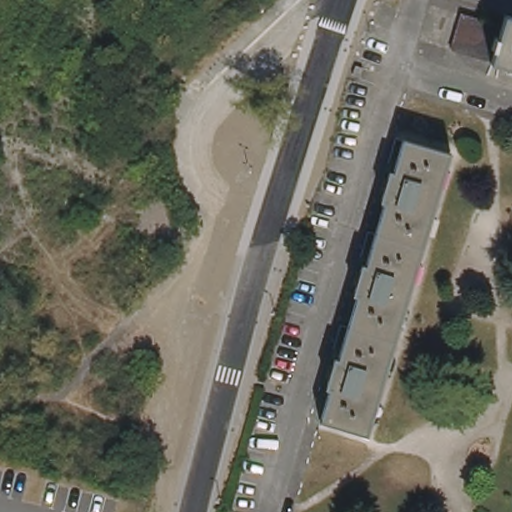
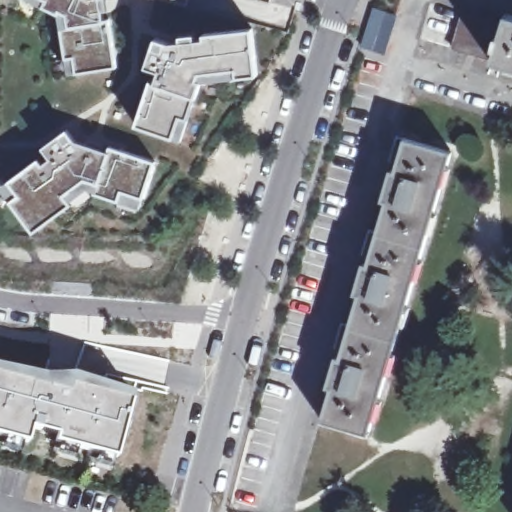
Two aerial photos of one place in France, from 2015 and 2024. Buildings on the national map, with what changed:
new [(61,30),(58,15),(43,8),(28,0),(106,0),(107,11),(101,11),(102,20),(107,20),(115,68),(76,74),(67,75),(65,60),(61,30)]
new [(161,0),(189,0),(187,6),(161,0)]
unchanged [(506,28),(507,16),(510,17),(512,18),(512,69),(455,52),(465,16),(506,28)]
new [(158,72),(145,68),(156,39),(163,42),(163,36),(179,34),(180,36),(194,35),(195,41),(205,40),(205,35),(252,30),(257,74),(238,76),(202,81),(195,98),(187,119),(182,141),(173,137),(138,126),(154,84),(158,72)]
new [(140,208),(117,200),(96,193),(85,190),(70,202),(72,205),(33,232),(11,202),(2,188),(10,182),(38,161),(42,166),(50,160),(43,148),(68,131),(75,142),(109,153),(111,148),(154,163),(142,199),(140,208)]
unchanged [(450,153),(369,434),(322,420),(332,388),(328,387),(336,359),(340,360),(358,295),(355,294),(363,265),(367,266),(385,201),(382,199),(391,170),(393,171),(403,140),(450,153)]
new [(73,376),(132,394),(115,457),(57,443),(60,436),(32,427),(26,443),(0,435),(0,366),(47,376),(73,376)]

